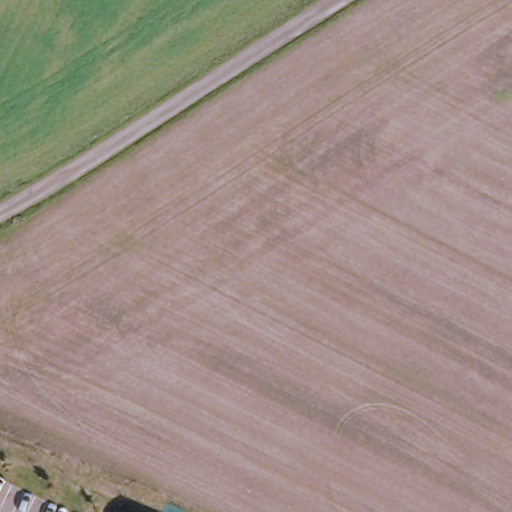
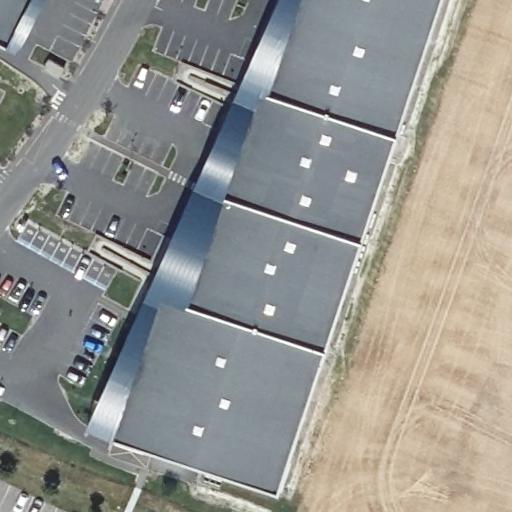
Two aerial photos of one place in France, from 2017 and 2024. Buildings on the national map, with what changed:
new [(10,56),(0,50),(0,0),(41,0),(10,56)]
new [(268,92),(258,89),(186,302),(158,293),(110,437),(86,425),(279,0),(299,0),(268,92)]
new [(277,494),(110,437),(158,293),(186,302),(258,89),(268,92),(299,0),(444,0),(277,494)]

